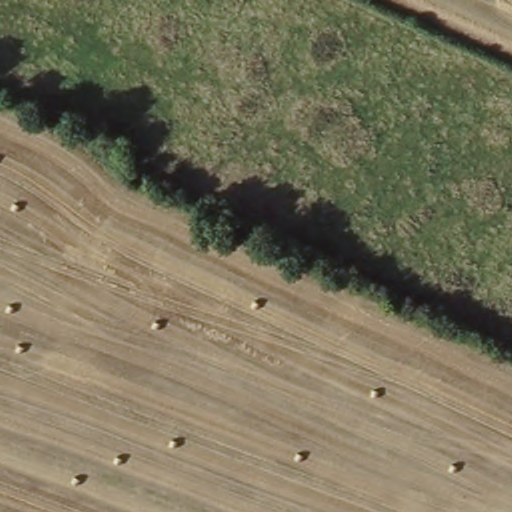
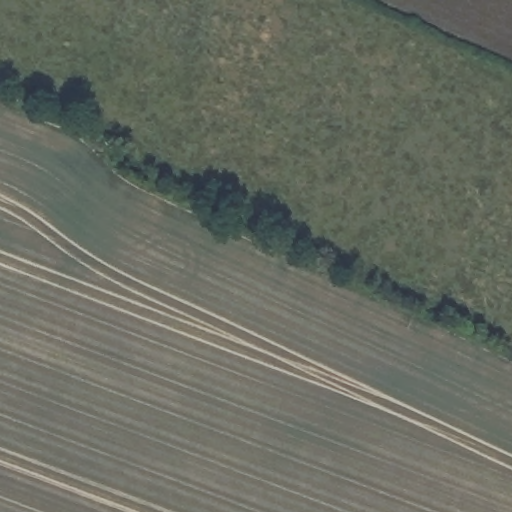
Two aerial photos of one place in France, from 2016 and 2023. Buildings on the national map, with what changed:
[]

